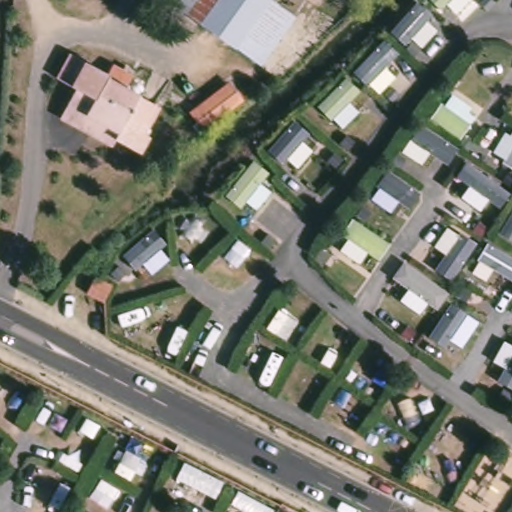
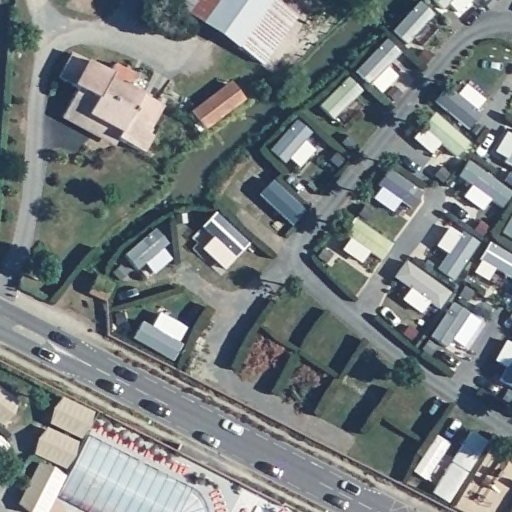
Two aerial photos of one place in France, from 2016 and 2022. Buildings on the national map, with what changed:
unchanged [(172,1),(173,0),(273,0),(239,48),(172,1)]
unchanged [(264,65),(239,48),(273,0),(277,0),(299,15),(264,65)]
unchanged [(106,74),(110,66),(130,76),(123,88),(158,106),(144,134),(149,136),(140,154),(116,140),(113,146),(59,117),(75,89),(56,79),(69,53),(106,74)]
unchanged [(230,78),(234,81),(245,95),(206,126),(192,109),(212,94),(230,78)]
unchanged [(116,285),(108,303),(91,295),(100,278),(116,285)]
new [(86,436),(195,492),(204,502),(208,512),(81,512),(54,499),(86,436)]

